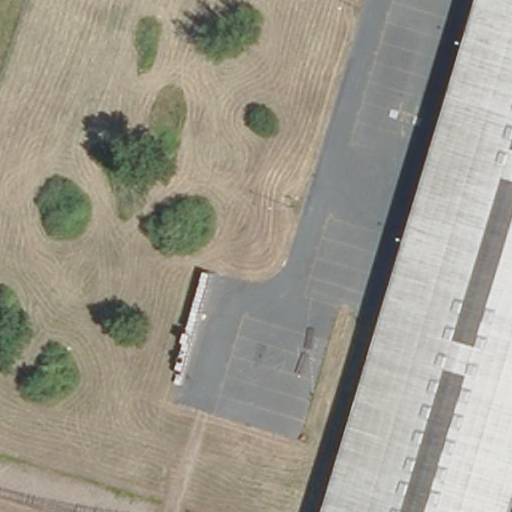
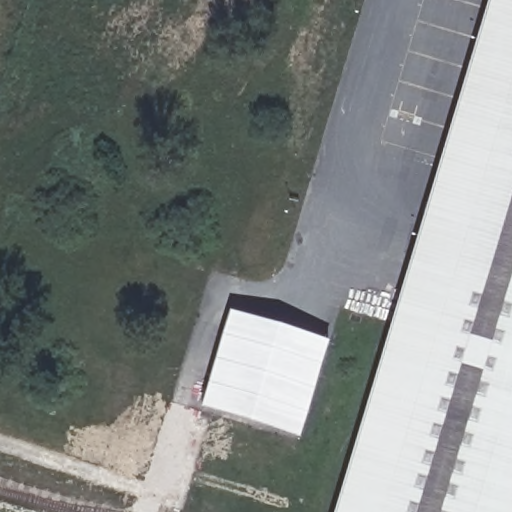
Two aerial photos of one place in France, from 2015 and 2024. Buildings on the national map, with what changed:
unchanged [(487,0),(512,0),(512,512),(330,512),(487,0)]
new [(231,313),(330,344),(300,441),(201,410),(231,313)]

